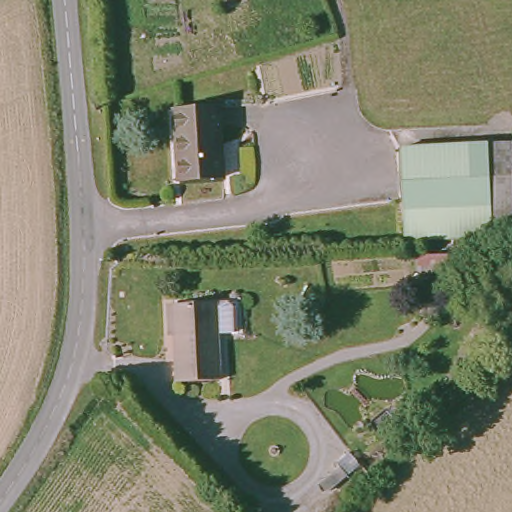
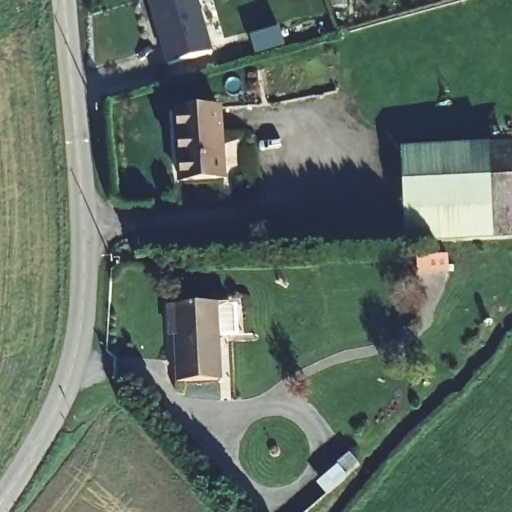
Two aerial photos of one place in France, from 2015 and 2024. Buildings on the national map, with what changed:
new [(196,0),(213,53),(170,67),(148,0),(196,0)]
new [(280,28),(286,45),(256,53),(251,37),(280,28)]
unchanged [(218,106),(221,178),(176,180),(173,109),(218,106)]
unchanged [(507,140),(511,238),(484,239),(483,142),(507,140)]
unchanged [(399,149),(483,142),(484,239),(405,244),(402,244),(399,149)]
new [(509,194),(512,194),(512,238),(511,238),(509,194)]
unchanged [(456,256),(457,273),(424,274),(423,258),(456,256)]
unchanged [(218,368),(174,370),(172,315),(215,314),(218,368)]

